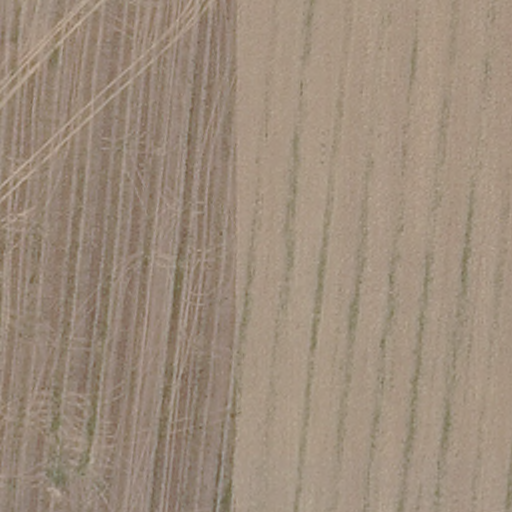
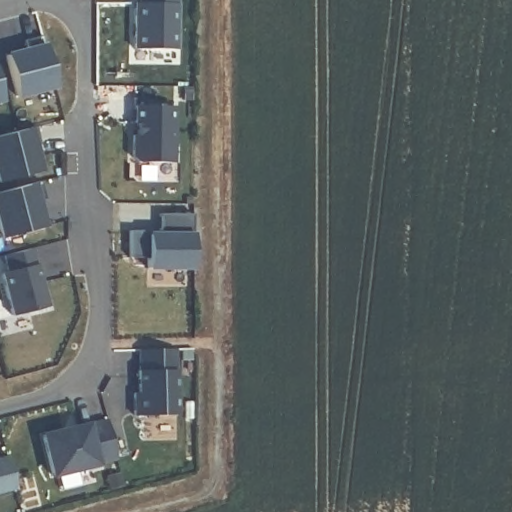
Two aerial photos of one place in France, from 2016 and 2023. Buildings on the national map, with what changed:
new [(180,44),(139,44),(139,0),(180,0),(180,44)]
new [(7,52),(30,47),(27,39),(43,35),(59,87),(18,100),(7,52)]
new [(5,104),(0,105),(0,85),(5,104)]
new [(173,156),(141,156),(136,151),(137,129),(141,130),(141,117),(139,117),(139,100),(174,100),(173,156)]
new [(0,164),(0,129),(41,119),(45,137),(35,139),(37,147),(41,146),(45,164),(3,174),(0,164)]
new [(46,174),(51,192),(38,195),(40,202),(44,202),(48,220),(6,230),(0,206),(0,185),(46,174)]
new [(150,261),(150,251),(132,251),(133,223),(162,223),(163,206),(196,207),(195,262),(150,261)]
new [(36,240),(51,299),(15,308),(4,265),(11,264),(7,248),(36,240)]
new [(136,408),(136,385),(141,385),(141,363),(142,363),(142,342),(177,341),(179,407),(136,408)]
new [(44,427),(89,416),(89,417),(109,412),(119,450),(98,455),(99,456),(54,467),(44,427)]
new [(0,483),(0,449),(9,447),(17,479),(0,483)]

